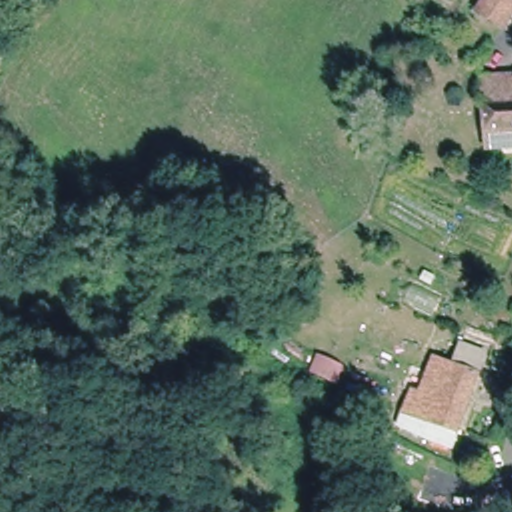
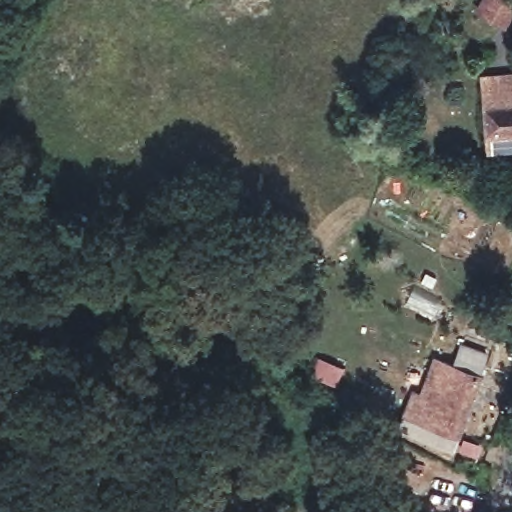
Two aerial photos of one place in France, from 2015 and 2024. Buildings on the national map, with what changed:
unchanged [(512,0),(512,20),(507,31),(475,11),(480,0),(512,0)]
unchanged [(484,90),(481,75),(502,74),(512,73),(512,145),(511,145),(489,146),(487,125),(484,90)]
unchanged [(408,424),(414,409),(406,408),(412,388),(420,391),(432,355),(455,363),(459,346),(490,357),(482,375),(452,447),(408,424)]

